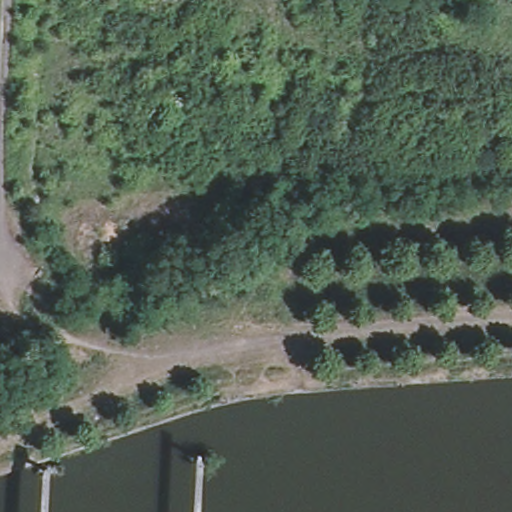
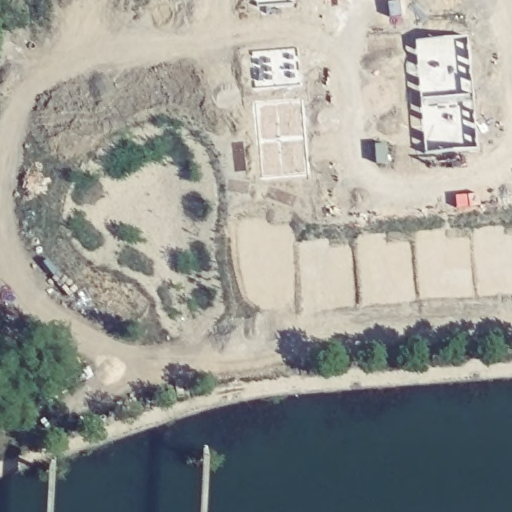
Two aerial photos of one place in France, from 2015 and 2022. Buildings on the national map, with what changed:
new [(294,2),(257,4),(256,0),(293,0),(294,2)]
new [(469,36),(479,149),(426,152),(416,40),(469,36)]
new [(308,177),(262,181),(251,52),(296,48),(308,177)]

